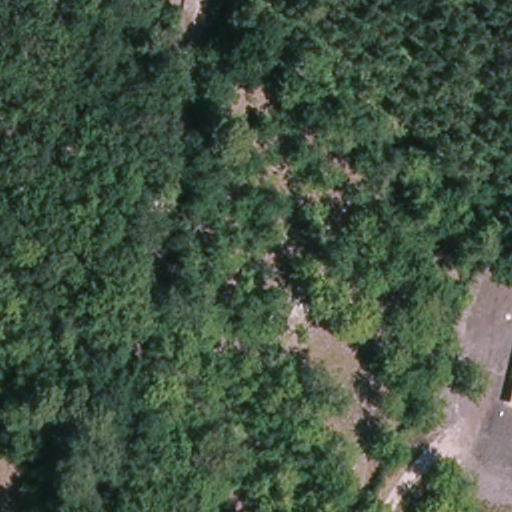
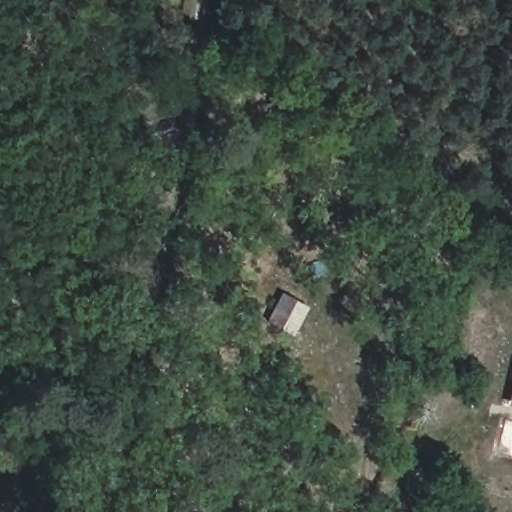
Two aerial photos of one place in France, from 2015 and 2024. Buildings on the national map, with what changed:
unchanged [(293,328),(271,316),(282,294),(303,309),(293,328)]
unchanged [(512,394),(512,407),(509,406),(512,394)]

